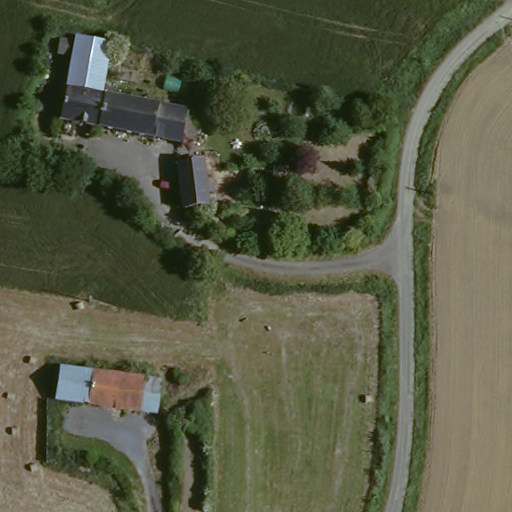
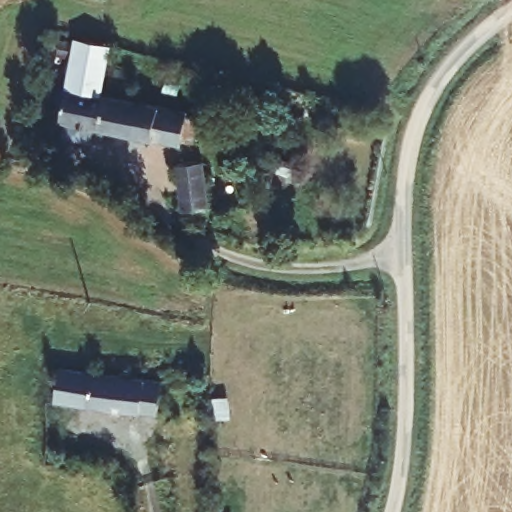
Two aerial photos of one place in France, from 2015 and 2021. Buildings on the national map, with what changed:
unchanged [(71,77),(78,30),(112,36),(104,85),(71,77)]
unchanged [(104,85),(96,120),(62,115),(71,77),(104,85)]
unchanged [(189,104),(188,110),(197,112),(192,134),(184,131),(182,137),(96,120),(104,85),(189,104)]
unchanged [(207,205),(200,205),(201,217),(180,220),(174,162),(201,160),(207,205)]
unchanged [(64,361),(95,365),(92,398),(60,394),(64,361)]
unchanged [(159,406),(143,405),(92,398),(95,365),(147,372),(165,375),(159,406)]

